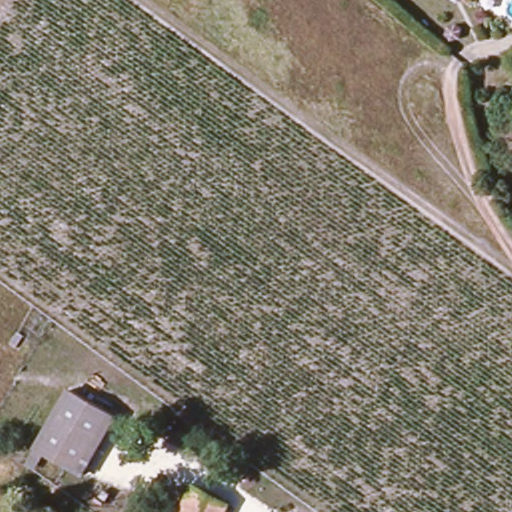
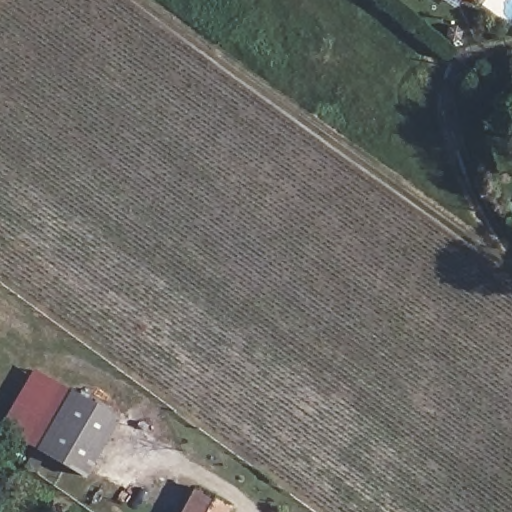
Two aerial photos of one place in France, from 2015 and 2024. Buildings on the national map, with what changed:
new [(38,451),(0,430),(0,423),(32,368),(72,391),(70,398),(38,451)]
unchanged [(81,484),(35,456),(70,398),(115,426),(81,484)]
unchanged [(194,490),(227,507),(224,512),(182,512),(194,490)]

